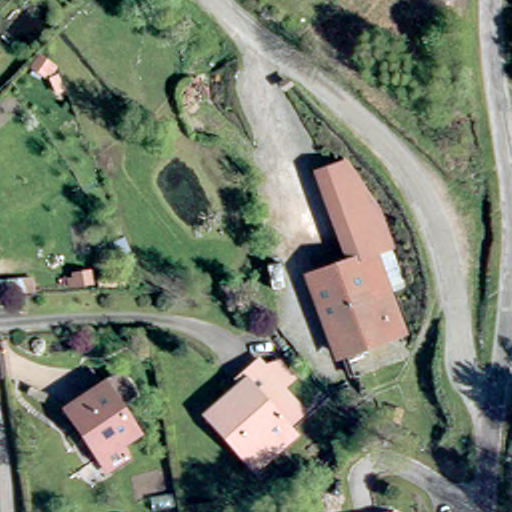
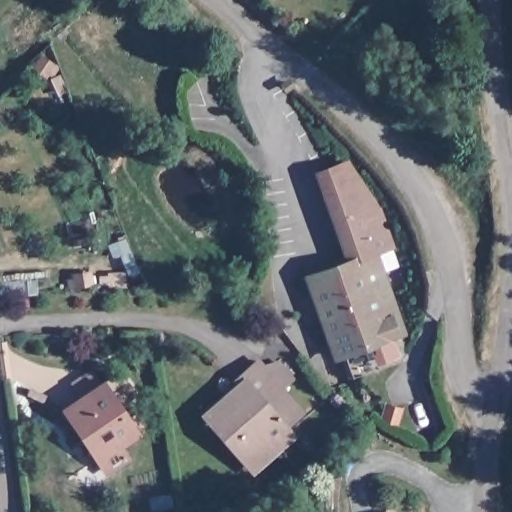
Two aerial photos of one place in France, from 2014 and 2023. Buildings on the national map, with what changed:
unchanged [(346,264),(317,173),(351,161),(383,207),(395,247),(378,252),(346,264)]
unchanged [(404,338),(411,361),(356,380),(348,356),(343,357),(316,277),(364,261),(382,256),(397,302),(408,337),(404,338)]
unchanged [(250,473),(243,465),(231,452),(204,422),(239,392),(233,385),(252,367),(258,374),(278,368),(294,388),(280,399),(297,418),(278,434),(285,442),(250,473)]
unchanged [(101,480),(94,469),(61,420),(78,409),(68,394),(89,380),(99,395),(114,385),(128,407),(112,417),(130,444),(112,457),(120,468),(101,480)]

